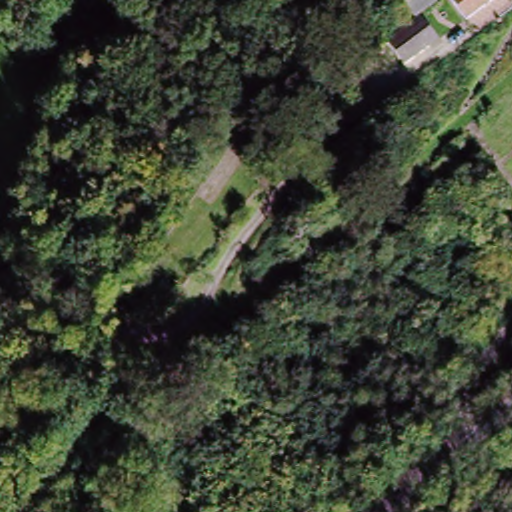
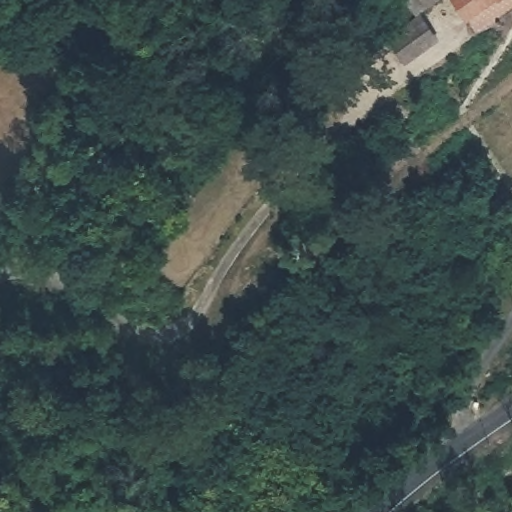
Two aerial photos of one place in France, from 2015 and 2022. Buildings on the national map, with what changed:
unchanged [(411,6),(418,0),(442,0),(442,1),(444,4),(421,21),(411,6)]
unchanged [(455,3),(458,0),(495,0),(499,6),(471,26),(455,3)]
unchanged [(504,0),(506,0),(505,1),(504,0)]
unchanged [(395,37),(407,29),(419,20),(437,44),(424,53),(413,61),(395,37)]

